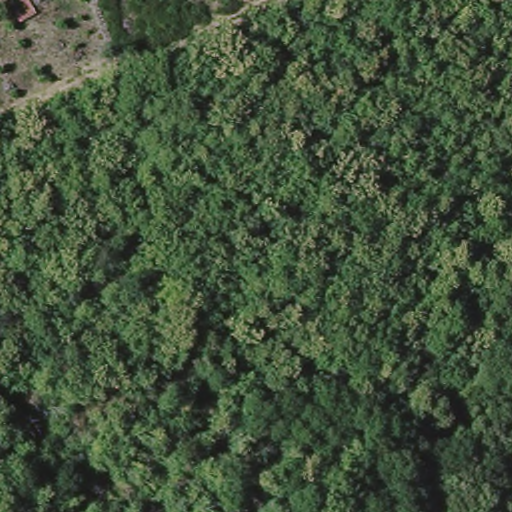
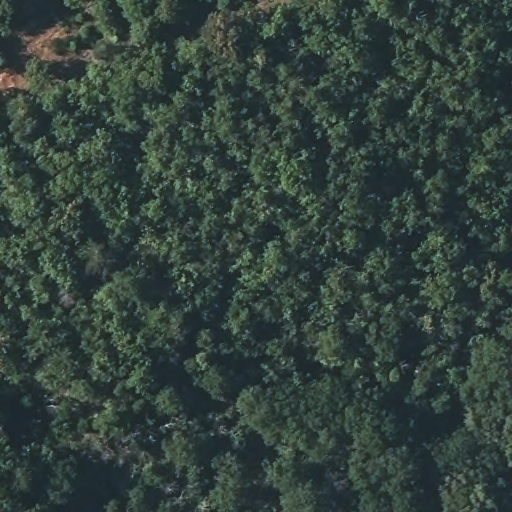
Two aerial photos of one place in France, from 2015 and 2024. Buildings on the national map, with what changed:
[]

